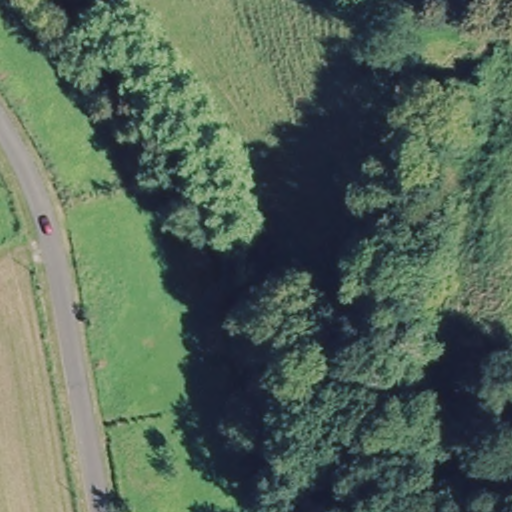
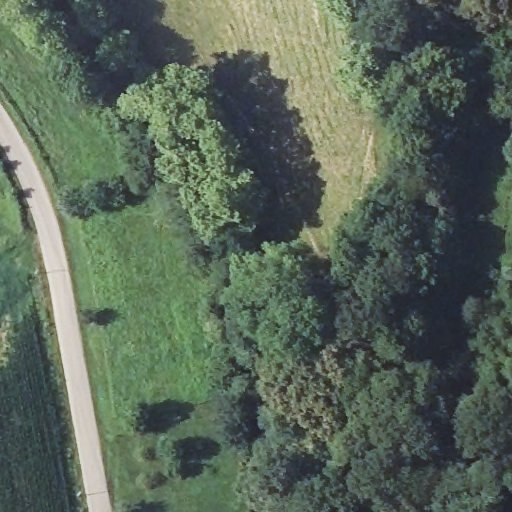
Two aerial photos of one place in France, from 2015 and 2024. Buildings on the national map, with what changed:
[]

